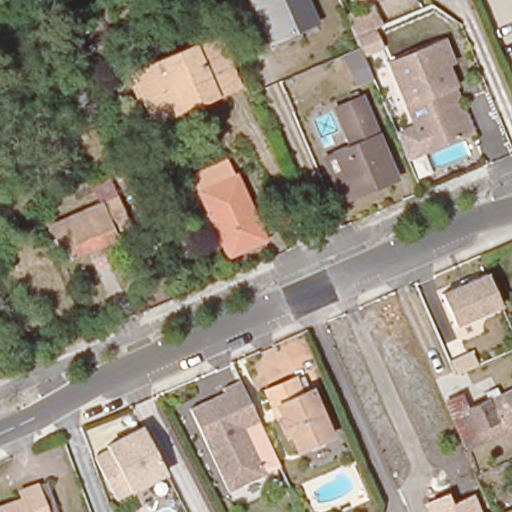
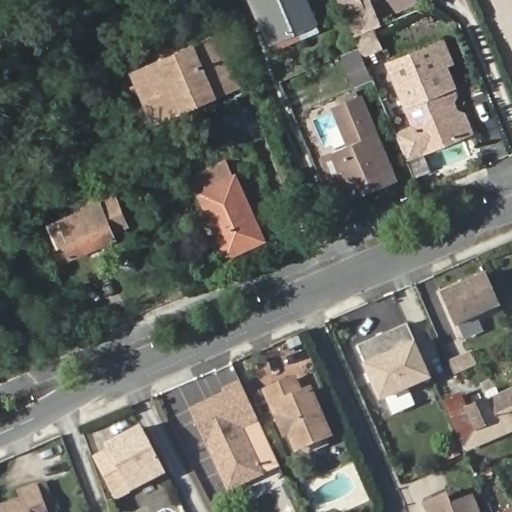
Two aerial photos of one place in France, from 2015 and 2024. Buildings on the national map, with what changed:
unchanged [(313,22),(270,40),(253,0),(304,0),(313,22)]
unchanged [(345,14),(369,5),(377,24),(372,27),(380,48),(362,57),(345,14)]
unchanged [(156,121),(144,94),(138,97),(133,88),(140,85),(134,72),(215,36),(237,85),(215,95),(184,109),(156,121)]
unchanged [(399,136),(397,130),(412,124),(386,63),(440,39),(449,59),(442,62),(451,83),(449,84),(468,129),(463,131),(425,147),(407,155),(399,136)]
unchanged [(326,151),(335,147),(358,137),(345,107),(343,103),(347,101),(364,94),(397,173),(353,191),(344,195),(326,151)]
unchanged [(225,251),(192,177),(191,175),(223,161),(224,164),(232,180),(236,178),(263,240),(243,249),(227,257),(225,251)]
unchanged [(126,222),(111,229),(114,238),(71,257),(63,241),(59,243),(50,222),(115,195),(126,222)]
unchanged [(441,294),(486,274),(500,307),(455,327),(441,294)]
new [(408,326),(431,379),(382,400),(358,348),(408,326)]
unchanged [(260,469),(222,487),(184,406),(202,397),(209,393),(219,388),(218,385),(236,376),(255,416),(276,462),(260,469)]
unchanged [(290,376),(297,392),(306,389),(325,434),(292,448),(285,431),(280,433),(273,417),(269,405),(262,389),(290,376)]
unchanged [(498,441),(464,456),(460,447),(440,401),(456,394),(458,393),(464,407),(512,387),(512,446),(502,450),(498,441)]
unchanged [(117,499),(96,456),(109,450),(106,444),(143,425),(166,474),(132,492),(117,499)]
unchanged [(10,490),(28,483),(28,486),(38,482),(48,512),(0,512),(0,503),(14,498),(10,490)]
unchanged [(449,502),(452,509),(470,501),(476,512),(431,512),(430,510),(449,502)]

